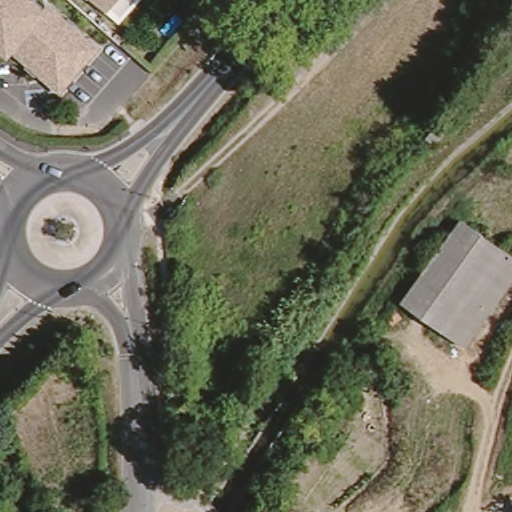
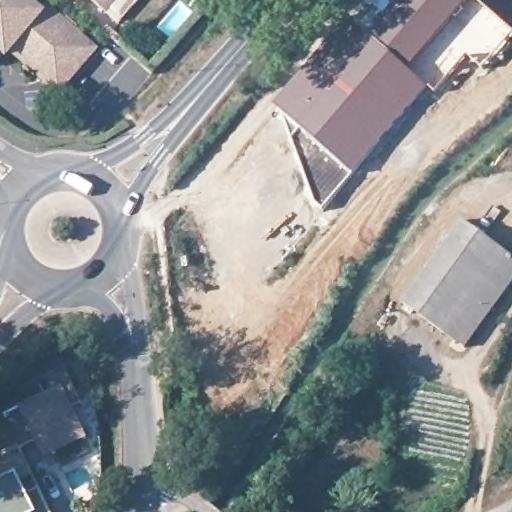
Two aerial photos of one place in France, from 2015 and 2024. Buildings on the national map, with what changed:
unchanged [(38,11),(46,4),(97,48),(56,95),(8,51),(3,57),(0,54),(0,0),(25,0),(38,11)]
unchanged [(107,16),(87,0),(121,0),(107,16)]
new [(375,30),(400,0),(471,0),(410,70),(372,34),(375,30)]
new [(471,0),(476,0),(512,31),(512,38),(483,71),(469,58),(436,94),(430,88),(410,70),(471,0)]
new [(318,55),(360,16),(375,30),(372,34),(410,70),(430,88),(354,176),(322,210),(313,198),(291,136),(298,131),(273,107),(318,55)]
unchanged [(450,130),(434,148),(419,135),(439,116),(450,130)]
unchanged [(459,221),(512,257),(512,275),(462,342),(402,299),(459,221)]
unchanged [(395,321),(387,313),(396,306),(402,315),(395,321)]
new [(37,443),(22,451),(6,419),(53,396),(46,381),(66,372),(82,406),(73,411),(87,440),(53,457),(45,460),(37,443)]
unchanged [(344,389),(351,375),(362,382),(355,396),(344,389)]
new [(5,471),(26,460),(51,512),(32,512),(32,511),(31,512),(0,512),(0,467),(3,466),(5,471)]
unchanged [(89,483),(81,472),(89,467),(96,478),(89,483)]

